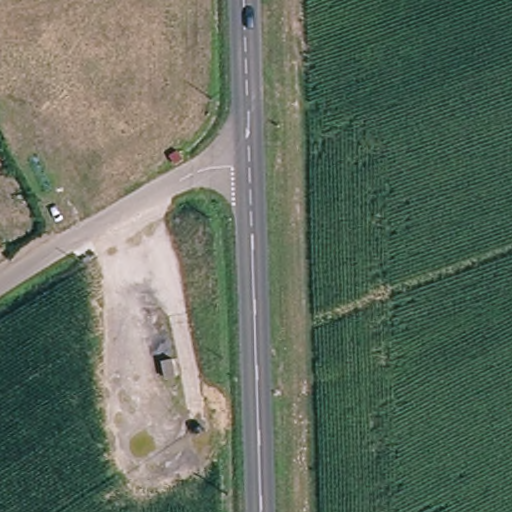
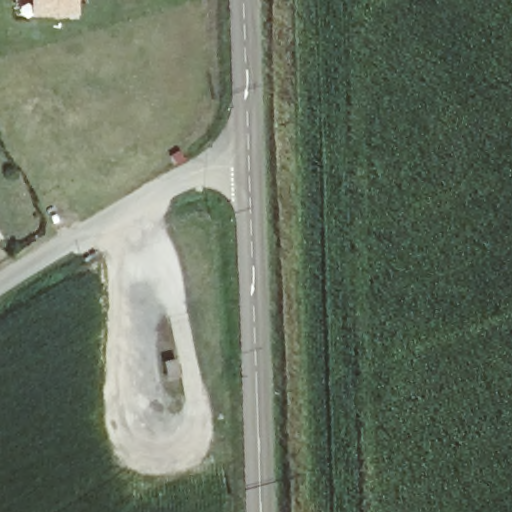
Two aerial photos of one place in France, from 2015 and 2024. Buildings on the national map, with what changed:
new [(74,14),(29,16),(28,0),(74,0),(74,14)]
unchanged [(179,361),(182,379),(168,382),(165,364),(179,361)]

